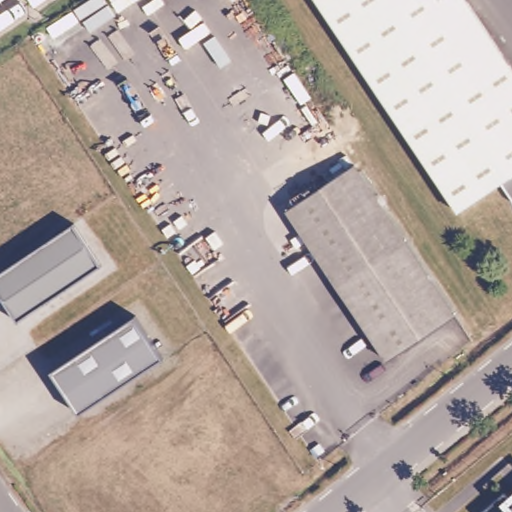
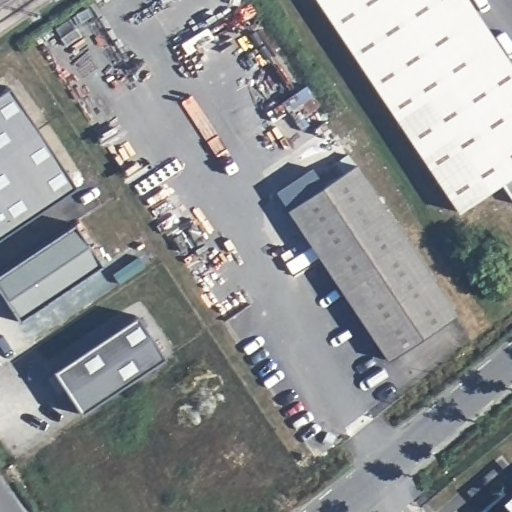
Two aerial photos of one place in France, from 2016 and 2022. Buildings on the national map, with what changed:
unchanged [(499,181),(455,209),(324,12),(316,0),(466,0),(512,68),(512,201),(499,181)]
new [(73,186),(0,235),(0,91),(8,86),(73,186)]
unchanged [(304,232),(289,207),(357,162),(457,312),(446,320),(388,358),(304,232)]
unchanged [(15,317),(0,293),(0,267),(72,220),(99,262),(15,317)]
unchanged [(120,345),(139,333),(166,375),(84,429),(83,429),(55,388),(120,345)]
unchanged [(479,508),(506,486),(512,493),(512,512),(482,512),(479,508)]

